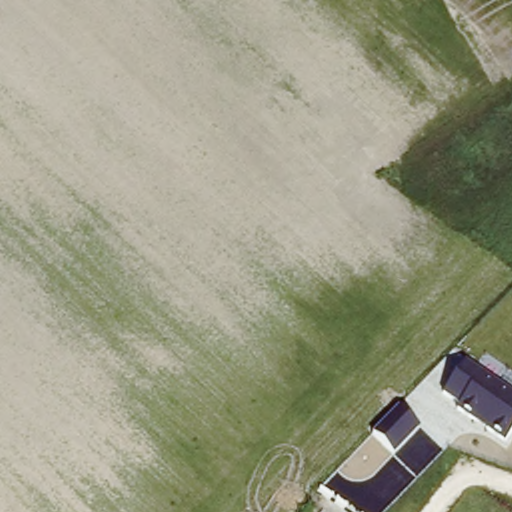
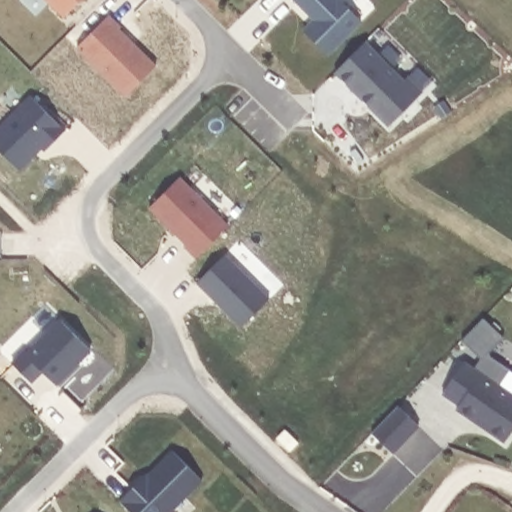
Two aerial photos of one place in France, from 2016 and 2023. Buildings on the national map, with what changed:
new [(64,18),(46,0),(81,0),(64,18)]
new [(363,21),(329,56),(303,31),(313,21),(293,0),(342,0),(363,21)]
new [(109,14),(122,27),(120,29),(157,65),(125,97),(76,47),(109,14)]
new [(365,41),(404,79),(407,77),(422,92),(389,126),(335,73),(365,41)]
new [(180,177),(229,226),(195,259),(185,247),(187,245),(149,207),(180,177)]
new [(225,254),(270,299),(242,327),(197,283),(225,254)]
unchanged [(512,398),(512,430),(503,443),(485,430),(486,428),(475,420),(474,422),(455,409),(458,405),(442,394),(463,363),(512,398)]
unchanged [(372,433),(400,406),(421,426),(395,453),(372,433)]
new [(149,475),(172,449),(203,481),(172,512),(131,512),(120,501),(147,473),(149,475)]

